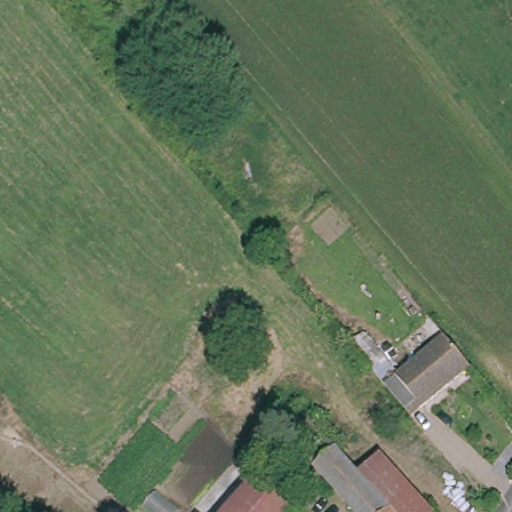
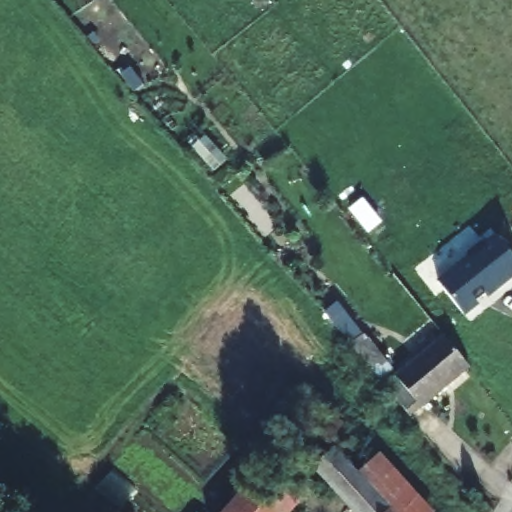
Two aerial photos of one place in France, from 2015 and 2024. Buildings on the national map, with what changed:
new [(469,257),(468,255),(483,243),(484,245),(497,235),(512,253),(512,289),(504,295),(503,293),(485,308),(487,309),(472,322),(439,282),(469,257)]
unchanged [(363,342),(398,383),(447,342),(473,372),(413,422),(394,401),(353,352),(363,342)]
unchanged [(311,423),(338,452),(356,473),(391,512),(353,512),(291,442),(311,423)]
unchanged [(435,512),(391,512),(356,473),(381,454),(435,512)]
unchanged [(263,474),(299,507),(294,512),(229,512),(259,477),(263,474)]

